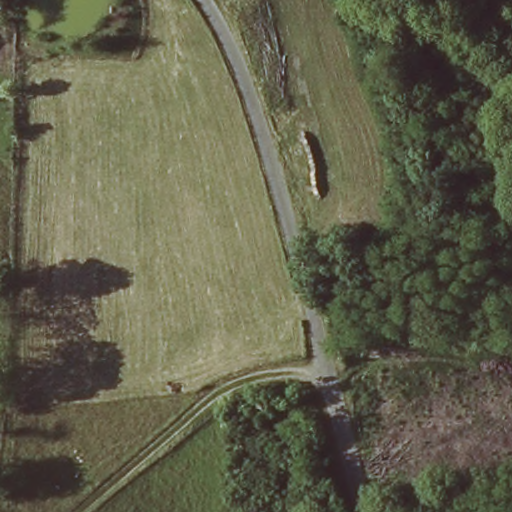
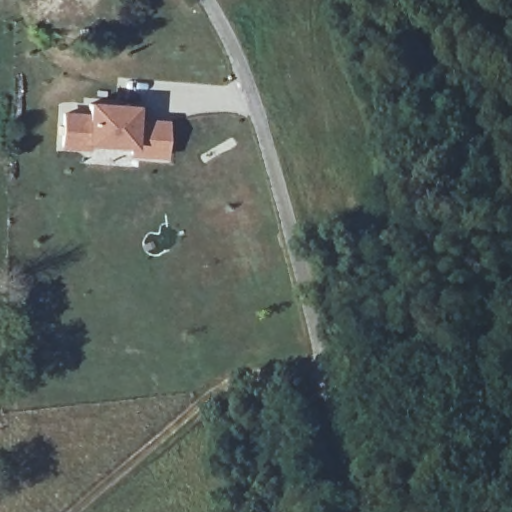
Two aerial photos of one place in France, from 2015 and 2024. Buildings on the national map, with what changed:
new [(132,156),(132,149),(90,146),(90,151),(61,149),(63,112),(88,114),(88,102),(138,107),(137,119),(168,121),(165,159),(132,156)]

